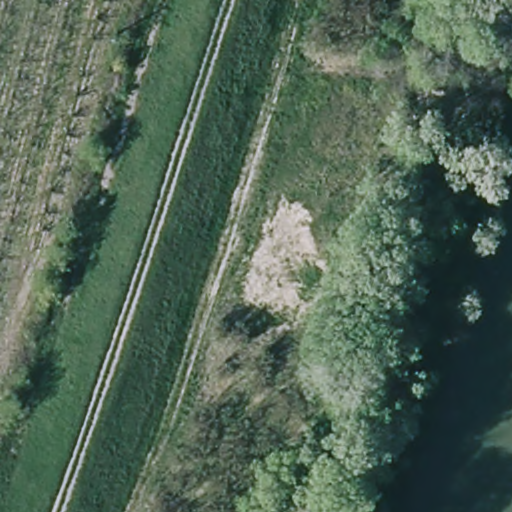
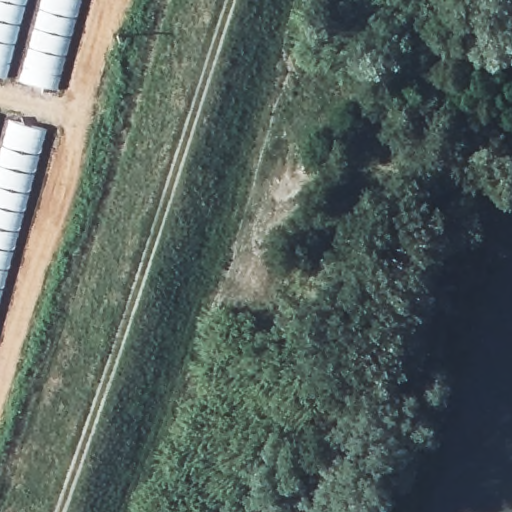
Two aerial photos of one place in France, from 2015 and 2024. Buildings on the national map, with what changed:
new [(78,0),(54,86),(0,73),(0,0),(78,0)]
new [(0,292),(0,117),(44,127),(0,292)]

